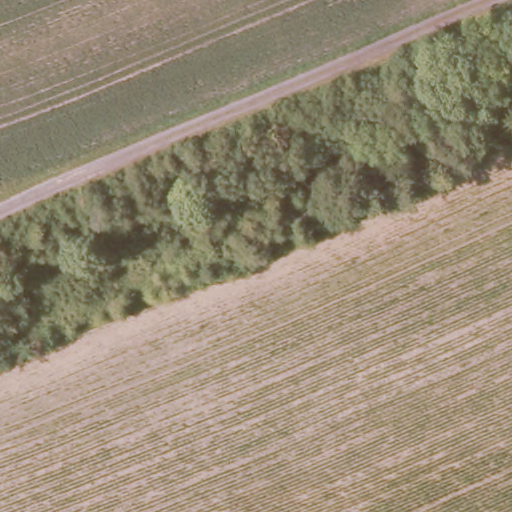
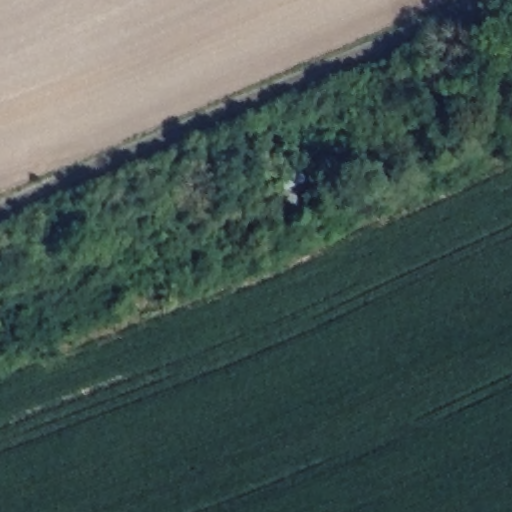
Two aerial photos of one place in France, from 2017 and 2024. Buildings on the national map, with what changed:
unchanged [(302,184),(291,189),(302,210),(287,219),(266,166),(291,156),(302,184)]

